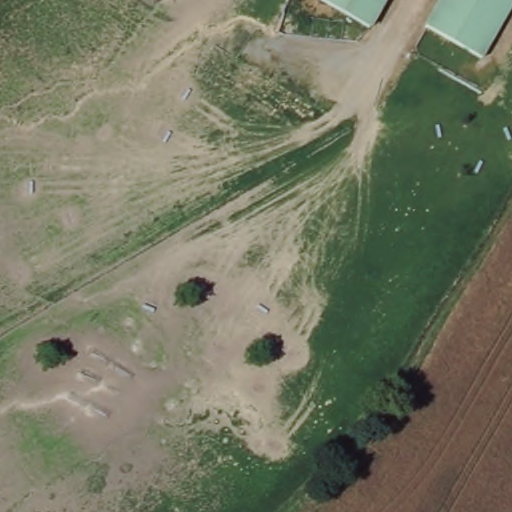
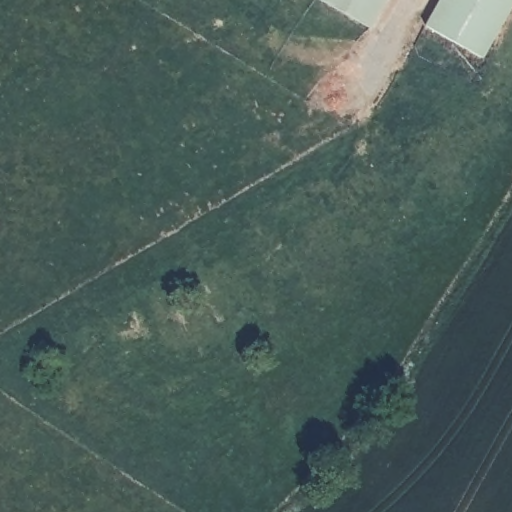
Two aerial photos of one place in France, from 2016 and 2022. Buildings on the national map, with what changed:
unchanged [(369,29),(316,0),(386,0),(369,29)]
unchanged [(512,10),(483,62),(420,26),(435,0),(512,0),(512,10)]

